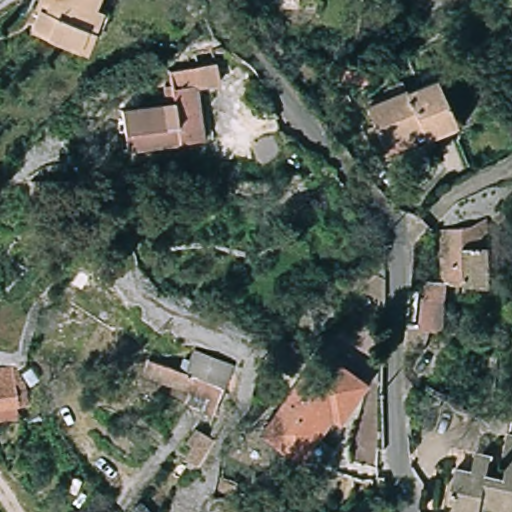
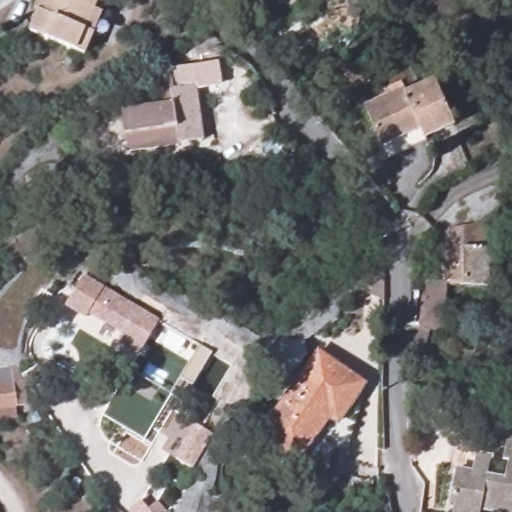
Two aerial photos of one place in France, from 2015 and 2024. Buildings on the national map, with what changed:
unchanged [(92,35),(85,32),(77,54),(52,43),(24,30),(31,11),(26,9),(28,3),(30,0),(94,0),(91,8),(100,12),(92,35)]
unchanged [(289,8),(244,4),(244,0),(290,0),(289,8)]
unchanged [(183,147),(130,157),(123,117),(166,108),(166,106),(164,95),(163,89),(169,87),(166,74),(190,69),(188,57),(197,52),(211,46),(217,85),(193,89),(199,121),(203,143),(183,147)]
unchanged [(378,70),(380,79),(353,86),(350,76),(378,70)]
unchanged [(381,161),(376,149),(360,109),(429,81),(448,129),(419,141),(421,145),(381,161)]
unchanged [(33,185),(70,186),(71,207),(34,206),(33,185)]
unchanged [(443,282),(442,229),(486,213),(488,281),(447,282),(443,282)]
new [(83,275),(159,320),(138,357),(115,343),(120,335),(88,313),(84,318),(64,305),(83,275)]
unchanged [(448,330),(435,331),(424,332),(423,299),(427,298),(427,282),(443,282),(447,282),(448,330)]
unchanged [(288,370),(261,350),(278,334),(283,333),(295,334),(303,352),(288,370)]
unchanged [(318,424),(295,454),(259,427),(319,344),(362,378),(344,442),(318,424)]
unchanged [(188,391),(141,374),(146,359),(176,369),(181,355),(189,359),(192,351),(228,364),(210,414),(197,409),(198,406),(185,401),(188,391)]
unchanged [(0,366),(23,364),(25,368),(33,405),(19,407),(20,417),(0,420),(0,366)]
new [(194,424),(213,436),(193,470),(174,458),(194,424)]
unchanged [(447,501),(453,468),(469,471),(472,455),(488,458),(484,477),(500,480),(504,461),(501,461),(506,436),(512,437),(512,512),(495,512),(478,509),(477,512),(449,512),(452,502),(447,501)]
unchanged [(159,512),(141,512),(138,509),(149,500),(159,512)]

